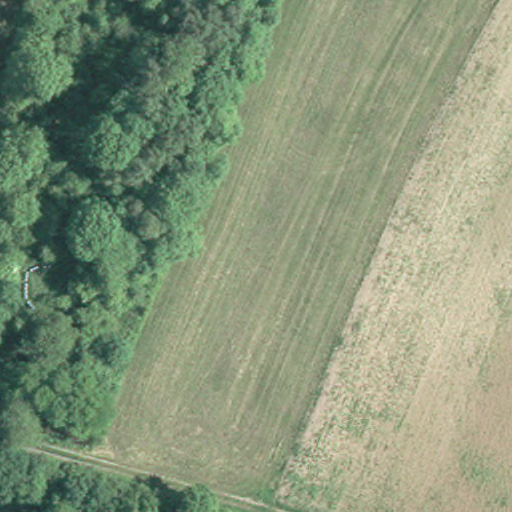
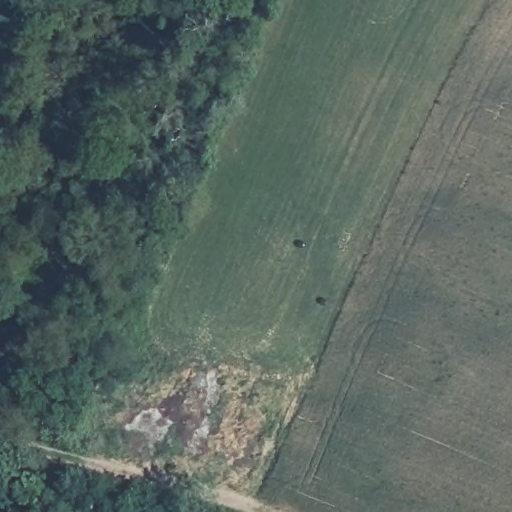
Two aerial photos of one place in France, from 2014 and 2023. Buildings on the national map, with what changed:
unchanged [(42,247),(19,318),(0,313),(0,303),(21,240),(42,247)]

